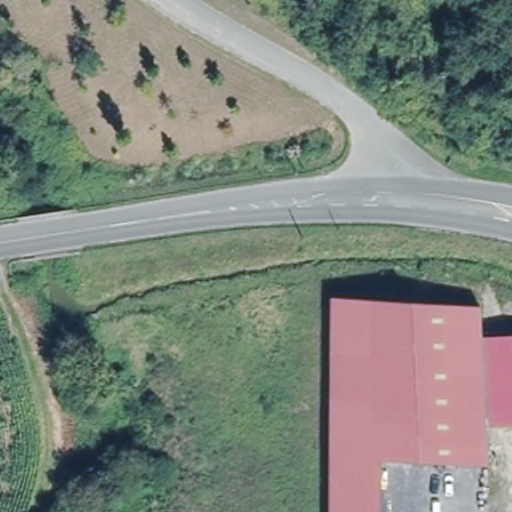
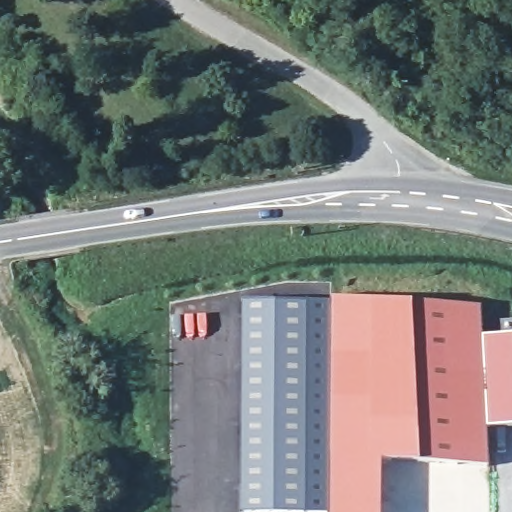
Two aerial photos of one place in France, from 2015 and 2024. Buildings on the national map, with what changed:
unchanged [(512,335),(512,426),(487,428),(487,466),(380,461),(380,512),(328,512),(330,299),(480,307),(482,337),(512,335)]
new [(307,302),(307,512),(241,512),(244,302),(307,302)]

